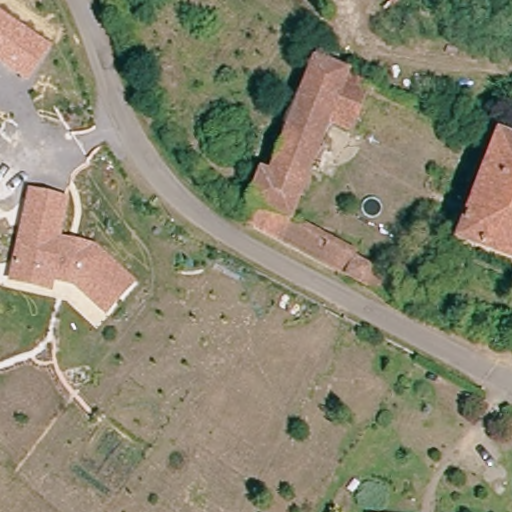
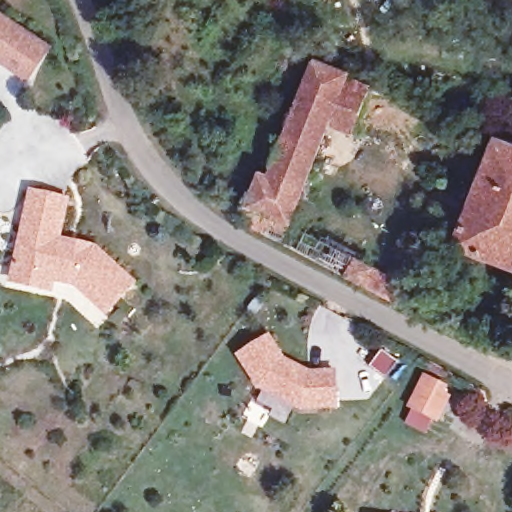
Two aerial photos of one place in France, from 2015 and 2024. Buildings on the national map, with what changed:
unchanged [(0,11),(52,45),(28,82),(0,63),(0,11)]
unchanged [(257,166),(264,168),(312,59),(349,74),(348,75),(375,87),(353,136),(325,124),(283,222),(396,282),(385,303),(234,222),(257,166)]
unchanged [(512,138),(512,265),(459,243),(464,232),(458,229),(466,214),(472,217),(505,135),(512,138)]
unchanged [(29,189),(68,197),(62,239),(92,244),(138,282),(108,316),(76,286),(55,281),(52,293),(9,285),(29,189)]
new [(284,357),(308,370),(336,368),(337,408),(300,410),(254,385),(234,355),(270,332),(284,357)]
new [(406,415),(409,408),(406,407),(423,372),(448,386),(445,392),(451,395),(432,428),(406,415)]

